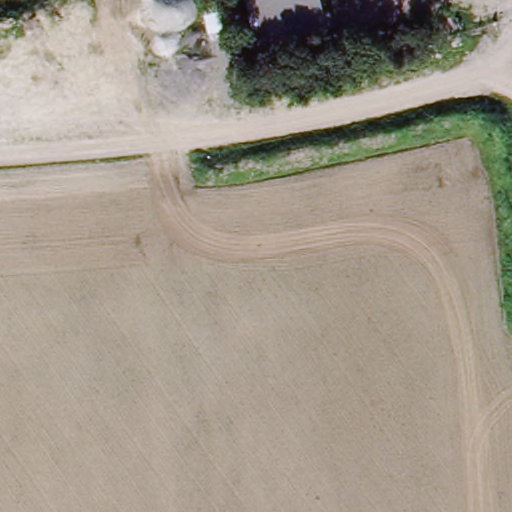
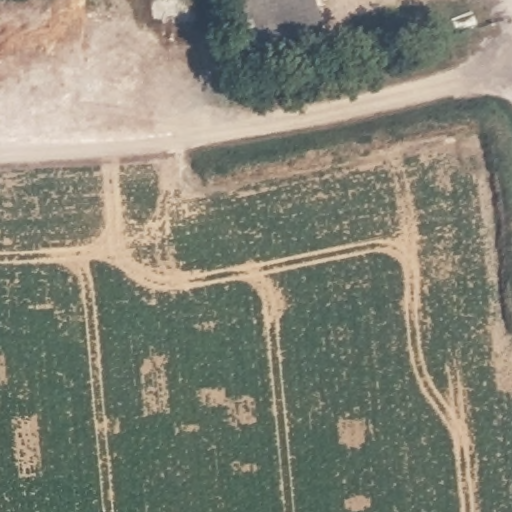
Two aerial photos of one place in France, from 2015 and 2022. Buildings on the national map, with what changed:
unchanged [(242,0),(322,0),(332,40),(258,58),(242,0)]

